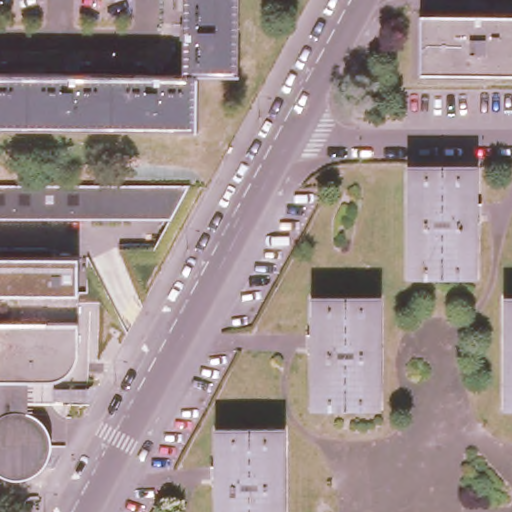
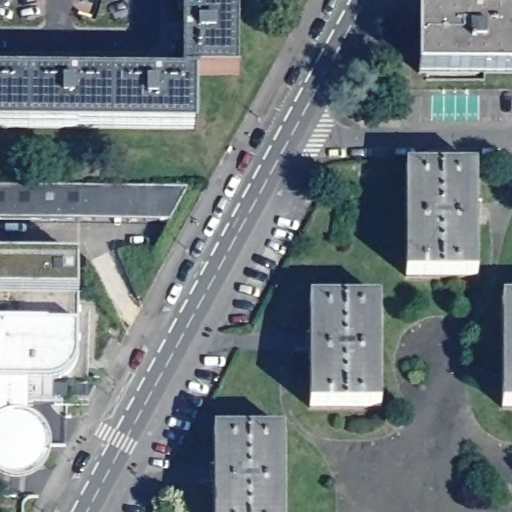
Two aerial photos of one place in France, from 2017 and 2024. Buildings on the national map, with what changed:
unchanged [(181,21),(181,0),(238,0),(238,71),(198,71),(181,71),(181,36),(176,36),(176,21),(181,21)]
unchanged [(474,3),(489,3),(489,8),(512,8),(512,69),(423,69),(424,7),(474,8),(474,3)]
unchanged [(0,127),(0,71),(60,71),(60,66),(75,66),(75,71),(141,71),(141,66),(156,66),(156,71),(181,71),(198,71),(198,128),(0,127)]
unchanged [(406,276),(406,165),(476,165),(476,203),(479,204),(479,220),(476,219),(476,276),(406,276)]
unchanged [(0,219),(0,189),(186,188),(170,221),(0,219)]
unchanged [(0,295),(0,259),(74,261),(76,296),(0,295)]
unchanged [(506,293),(512,293),(512,403),(506,403),(506,293)]
unchanged [(379,297),(379,409),(310,408),(310,350),(306,350),(306,333),(309,333),(310,297),(379,297)]
unchanged [(80,326),(78,354),(74,366),(64,373),(48,377),(33,376),(30,413),(35,415),(38,417),(39,418),(41,420),(44,423),(46,426),(48,430),(49,436),(50,442),(48,454),(46,458),(44,461),(42,464),(39,466),(38,468),(35,469),(33,470),(31,471),(27,473),(25,474),(21,474),(16,474),(13,474),(10,473),(8,472),(4,470),(0,468),(0,322),(80,326)]
unchanged [(284,429),(284,512),(213,512),(213,482),(209,482),(209,466),(213,466),(214,429),(284,429)]

